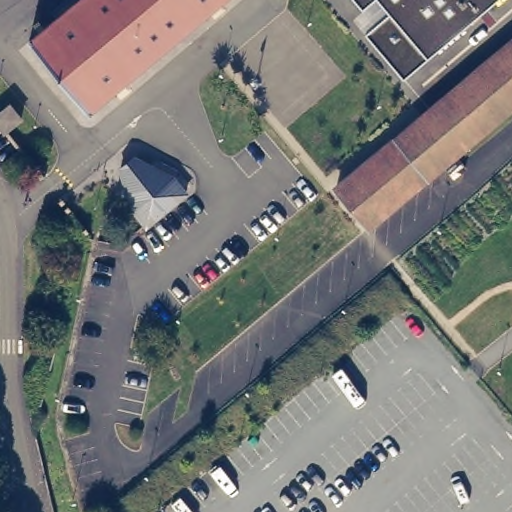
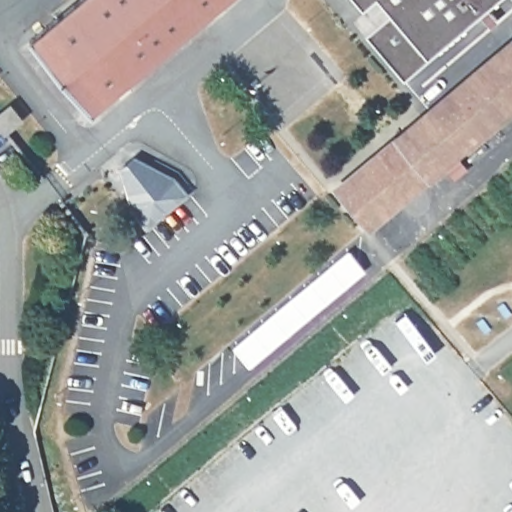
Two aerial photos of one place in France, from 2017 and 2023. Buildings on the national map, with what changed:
unchanged [(88,112),(29,42),(79,0),(222,0),(88,112)]
unchanged [(404,80),(350,17),(359,10),(351,0),(498,0),(404,80)]
unchanged [(512,41),(512,107),(368,227),(336,189),(512,41)]
unchanged [(0,127),(0,114),(10,106),(21,120),(5,133),(0,127)]
unchanged [(177,173),(191,191),(146,227),(126,210),(116,166),(137,153),(177,173)]

